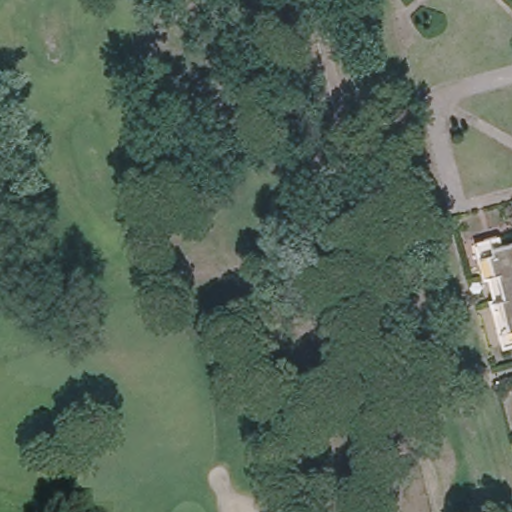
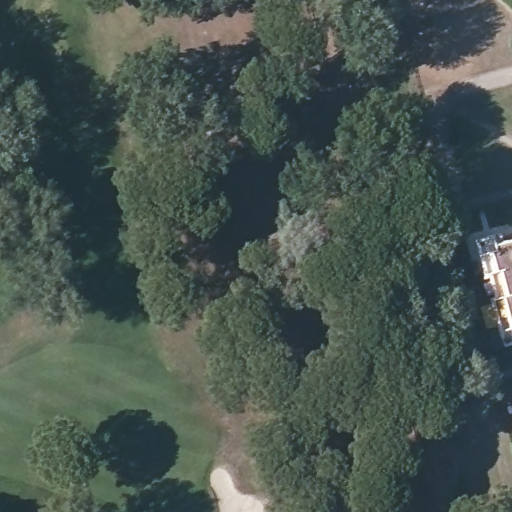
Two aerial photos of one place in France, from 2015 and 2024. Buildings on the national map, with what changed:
unchanged [(498,293),(492,269),(487,269),(482,247),(478,234),(500,228),(502,236),(512,233),(512,341),(507,342),(502,326),(494,295),(498,293)]

